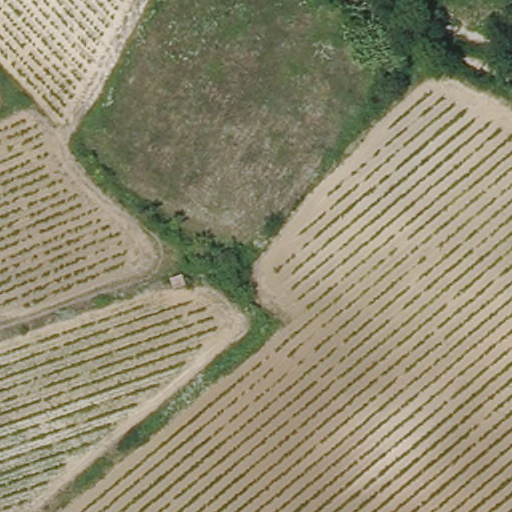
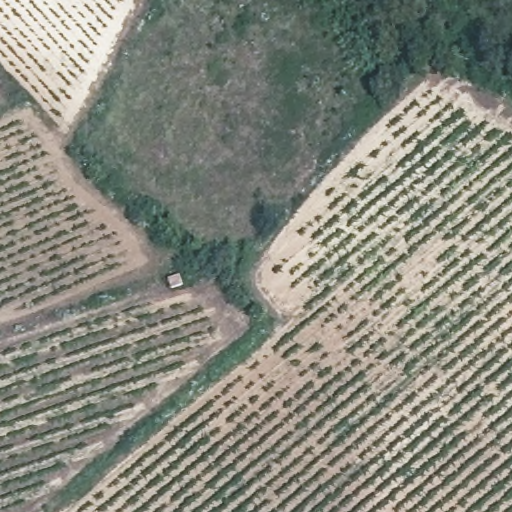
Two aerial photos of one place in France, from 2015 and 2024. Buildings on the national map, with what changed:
unchanged [(168,278),(183,273),(187,287),(174,292),(171,284),(168,278)]

